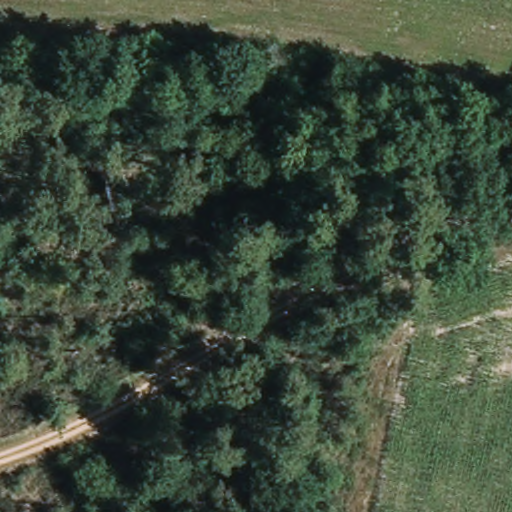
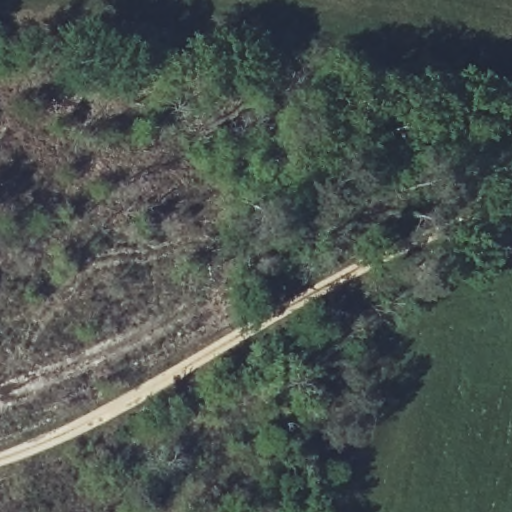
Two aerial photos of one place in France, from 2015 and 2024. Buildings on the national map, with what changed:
[]

